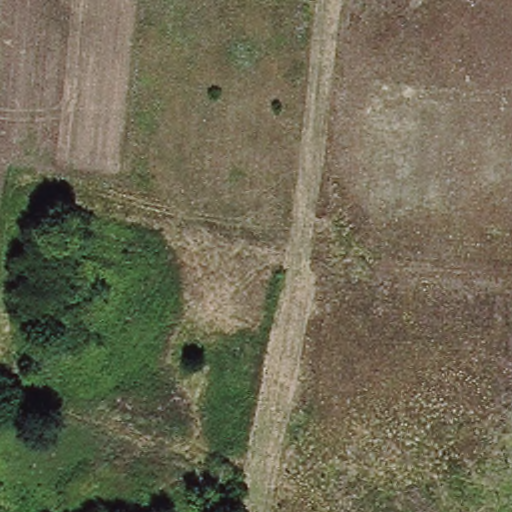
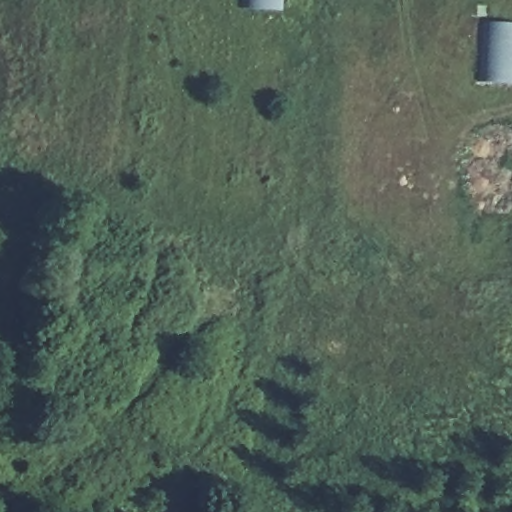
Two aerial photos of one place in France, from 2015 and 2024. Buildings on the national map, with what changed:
new [(512,23),(512,86),(476,85),(480,21),(512,23)]

